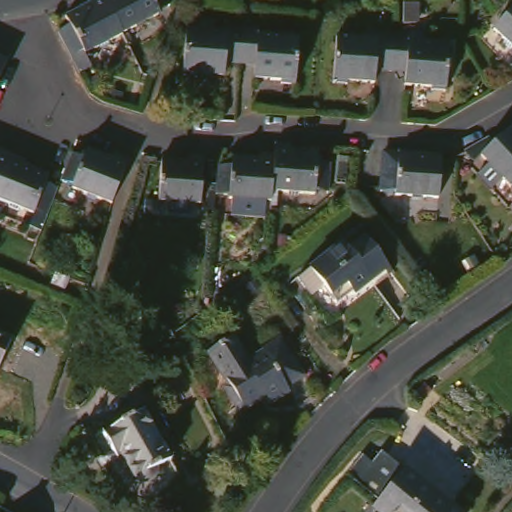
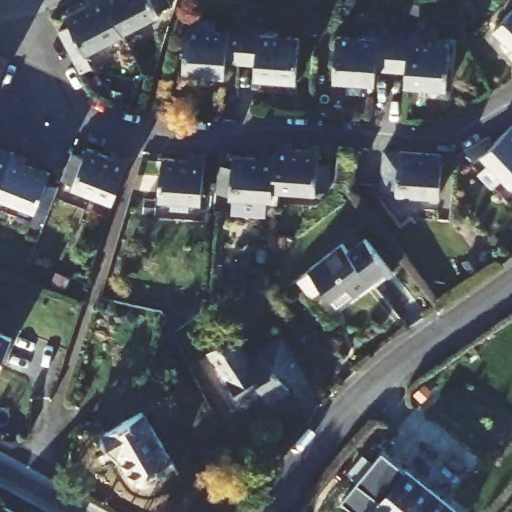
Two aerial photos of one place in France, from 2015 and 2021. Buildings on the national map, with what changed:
unchanged [(132,29),(119,36),(120,38),(110,44),(109,41),(94,49),(101,63),(90,69),(69,27),(79,21),(75,12),(98,0),(117,0),(132,29)]
unchanged [(180,1),(169,7),(170,10),(156,17),(157,19),(148,24),(146,21),(132,29),(117,0),(180,0),(180,1)]
unchanged [(250,58),(236,57),(235,71),(207,69),(206,72),(191,70),(195,24),(200,24),(200,13),(225,15),(225,26),(237,27),(237,19),(254,21),(250,58)]
unchanged [(254,21),(268,22),(267,30),(308,33),(305,79),(290,78),(291,76),(263,74),(265,59),(250,58),(254,21)]
unchanged [(403,27),(400,66),(385,65),(385,78),(358,76),(357,79),(342,78),(346,31),(386,34),(387,26),(403,27)]
unchanged [(403,27),(419,28),(418,36),(460,40),(456,86),(441,85),(441,83),(412,81),(413,68),(400,67),(400,66),(403,27)]
unchanged [(16,57),(0,94),(0,49),(16,57)]
unchanged [(512,171),(510,169),(507,171),(499,162),(501,161),(490,149),(503,138),(512,130),(512,171)]
unchanged [(301,139),(301,145),(328,147),(327,157),(340,158),(339,187),(325,186),(325,189),(310,187),(310,190),(297,189),(298,186),(282,185),(285,149),(286,137),(301,139)]
unchanged [(0,190),(0,146),(5,148),(7,144),(22,150),(5,192),(0,190)]
unchanged [(140,155),(122,199),(109,194),(107,196),(96,192),(97,189),(82,182),(83,180),(71,176),(74,170),(82,149),(94,153),(97,144),(122,154),(125,149),(140,155)]
unchanged [(452,151),(449,192),(433,191),(433,193),(421,193),(421,190),(405,189),(405,186),(390,184),(393,146),(452,151)]
unchanged [(285,149),(282,185),(281,195),(266,194),(266,197),(255,197),(255,194),(239,192),(239,189),(226,188),(229,160),(241,160),(242,151),(269,153),(270,147),(285,149)]
unchanged [(22,150),(36,156),(35,160),(59,169),(56,178),(68,183),(57,210),(45,206),(45,207),(30,202),(29,205),(19,201),(20,198),(5,192),(22,150)]
unchanged [(215,156),(211,203),(196,202),(196,204),(185,203),(185,200),(168,199),(171,158),(199,160),(199,155),(215,156)]
unchanged [(306,274),(320,265),(353,239),(358,245),(375,232),(399,264),(381,277),(380,275),(347,300),(335,283),(321,293),(306,274)]
unchanged [(21,334),(6,369),(0,366),(0,325),(21,334)]
unchanged [(243,331),(259,357),(274,347),(272,344),(290,333),(314,370),(295,382),(298,386),(278,398),(272,387),(247,402),(235,383),(240,380),(218,346),(243,331)]
unchanged [(154,405),(182,455),(166,463),(166,465),(166,469),(166,470),(165,471),(165,472),(164,473),(164,474),(162,475),(161,475),(160,476),(159,476),(158,477),(156,477),(154,477),(152,478),(151,478),(150,477),(149,476),(148,476),(146,475),(145,474),(132,451),(127,453),(112,429),(154,405)]
unchanged [(395,512),(389,507),(392,503),(366,481),(391,450),(468,512),(395,512)]

